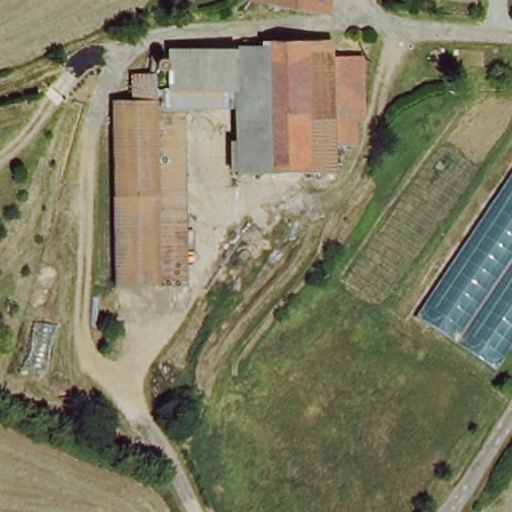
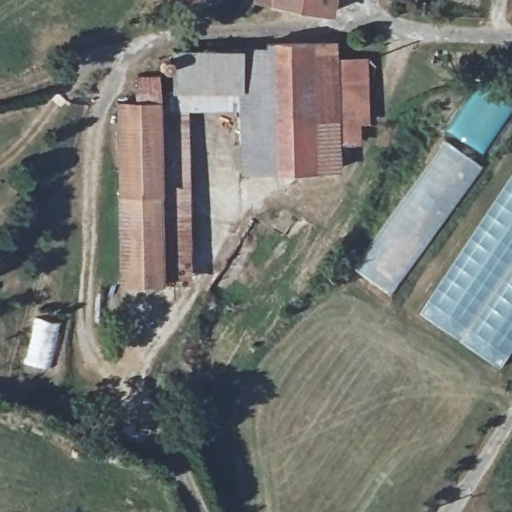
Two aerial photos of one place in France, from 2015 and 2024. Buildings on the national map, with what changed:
unchanged [(329,12),(272,2),(272,0),(331,0),(329,12)]
unchanged [(335,37),(335,51),(365,52),(367,116),(355,117),(355,138),(336,139),(336,166),(240,167),(240,107),(177,107),(178,277),(118,278),(117,97),(132,97),(132,71),(157,71),(157,86),(172,87),(172,46),(239,44),(239,40),(275,39),(276,34),(335,37)]
new [(355,269),(446,143),(480,166),(387,292),(355,269)]
unchanged [(512,178),(512,349),(499,368),(422,312),(512,178)]

